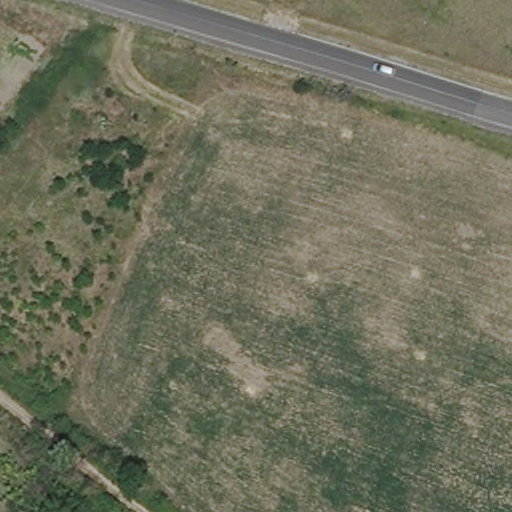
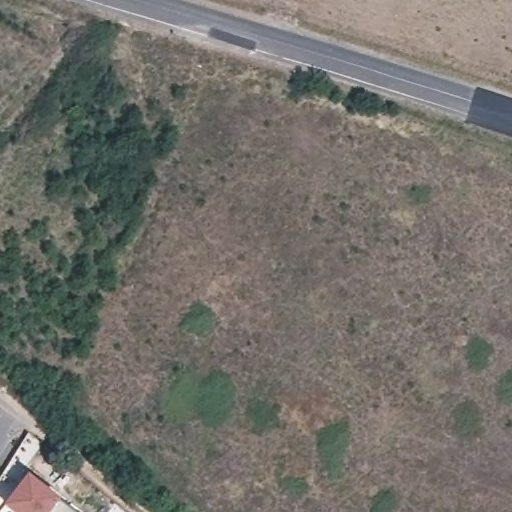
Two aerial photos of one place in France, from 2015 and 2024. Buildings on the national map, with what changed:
new [(30,478),(74,512),(14,512),(7,507),(30,478)]

